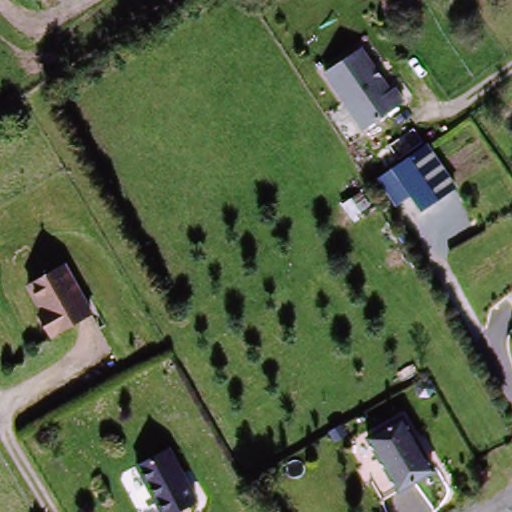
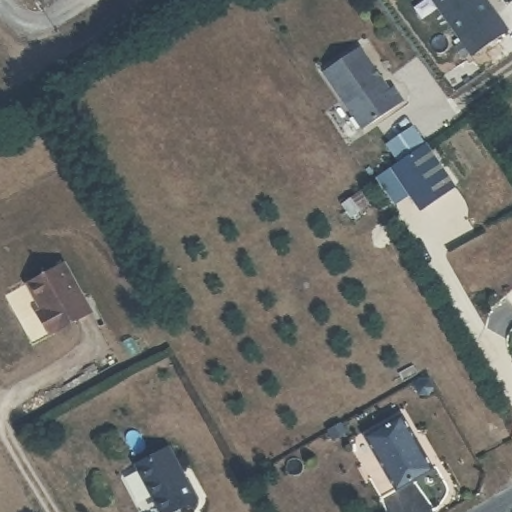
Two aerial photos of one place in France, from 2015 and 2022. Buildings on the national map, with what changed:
new [(498,15),(462,41),(432,0),(488,0),(498,15)]
unchanged [(387,84),(399,80),(410,100),(371,128),(328,64),(365,46),(387,84)]
unchanged [(428,168),(438,162),(447,180),(421,202),(394,171),(412,155),(428,168)]
unchanged [(62,267),(89,313),(50,335),(37,313),(41,310),(29,287),(62,267)]
unchanged [(416,409),(445,456),(410,476),(382,430),(416,409)]
unchanged [(410,476),(394,485),(366,440),(382,430),(410,476)]
unchanged [(189,507),(182,512),(154,512),(129,468),(159,451),(189,507)]

